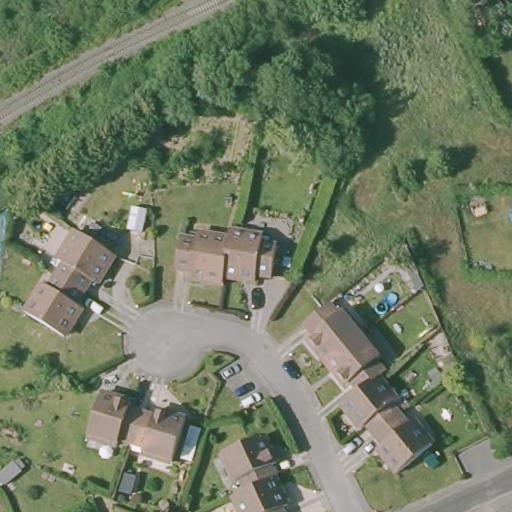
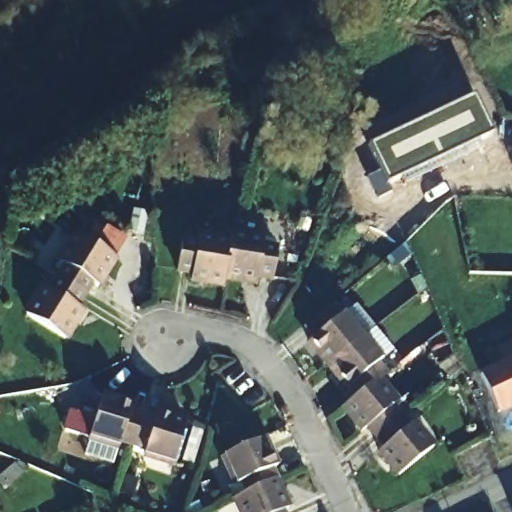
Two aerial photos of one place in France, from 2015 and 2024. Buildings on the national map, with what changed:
new [(473,95),(492,133),(386,183),(391,192),(377,198),(367,177),(381,171),(369,144),(473,95)]
unchanged [(230,235),(222,278),(221,285),(187,279),(187,272),(172,269),(177,240),(193,242),(193,235),(227,240),(228,232),(231,233),(230,235)]
unchanged [(71,264),(65,261),(82,233),(120,257),(103,285),(96,281),(91,290),(65,274),(71,264)]
unchanged [(230,235),(231,233),(258,238),(257,246),(272,248),(267,277),(252,275),(251,282),(222,278),(230,235)]
unchanged [(90,292),(82,305),(87,309),(70,337),(32,313),(50,286),(55,289),(64,276),(65,274),(91,290),(90,292)]
unchanged [(323,358),(304,335),(310,330),(302,320),(325,301),(333,311),(339,307),(358,330),(360,332),(325,360),(323,358)]
unchanged [(360,332),(377,353),(370,357),(380,369),(374,374),(357,388),(348,377),(342,382),(325,360),(360,332)]
new [(505,405),(497,409),(480,372),(512,358),(512,408),(508,410),(505,405)]
unchanged [(392,397),(386,401),(395,412),(397,414),(373,432),(372,431),(363,420),(357,425),(339,402),(357,388),(374,374),(392,397)]
unchanged [(135,436),(131,449),(115,445),(113,452),(84,442),(97,399),(127,409),(125,416),(137,420),(140,421),(135,436)]
unchanged [(397,414),(403,422),(408,417),(428,441),(393,469),(374,446),(380,440),(373,432),(397,414)]
unchanged [(135,436),(140,421),(150,424),(152,417),(181,426),(168,469),(138,460),(140,453),(131,449),(135,436)]
unchanged [(230,495),(245,489),(238,475),(230,478),(218,451),(258,432),(272,459),(265,462),(272,475),(272,478),(232,497),(230,495)]
unchanged [(277,504),(280,512),(238,512),(232,497),(272,478),(283,502),(277,504)]

